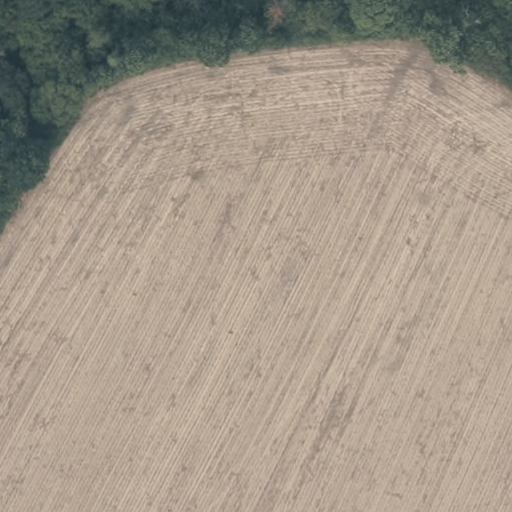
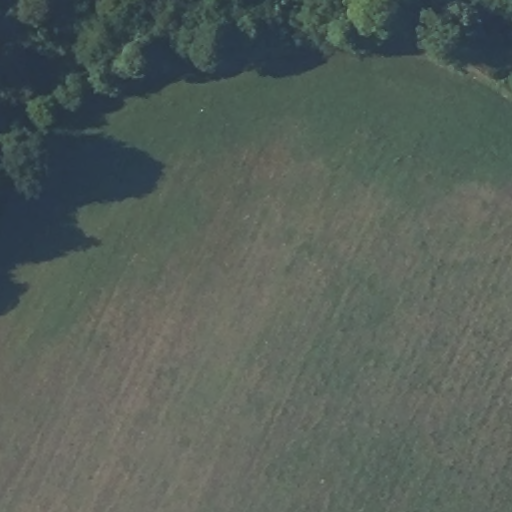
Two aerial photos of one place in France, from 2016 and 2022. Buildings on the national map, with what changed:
[]

